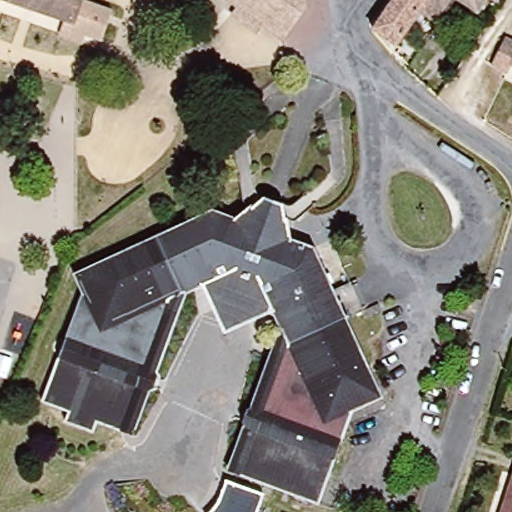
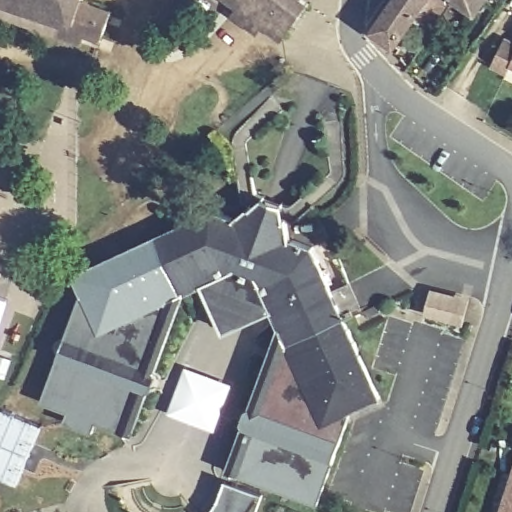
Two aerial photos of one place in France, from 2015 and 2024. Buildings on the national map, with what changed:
unchanged [(74,24),(7,0),(82,0),(74,24)]
unchanged [(112,9),(100,40),(84,34),(80,46),(57,38),(64,20),(74,24),(82,0),(84,0),(112,9)]
unchanged [(228,0),(306,0),(310,4),(282,38),(263,24),(257,32),(233,15),(239,7),(228,0)]
unchanged [(428,22),(426,22),(403,57),(398,54),(399,50),(367,27),(387,0),(443,0),(428,22)]
unchanged [(473,12),(457,0),(481,0),(473,12)]
unchanged [(494,8),(482,0),(500,0),(494,8)]
unchanged [(507,71),(491,63),(506,35),(512,38),(512,64),(507,71)]
unchanged [(88,303),(76,276),(228,209),(240,214),(252,202),(260,207),(269,197),(281,201),(281,214),(287,216),(290,236),(304,242),(336,311),(372,390),(349,400),(343,414),(312,491),(263,472),(228,458),(278,329),(272,315),(223,337),(201,287),(185,294),(136,421),(55,389),(88,303)]
unchanged [(1,253),(0,256),(0,239),(5,241),(1,253)]
new [(184,365),(232,384),(214,431),(166,413),(184,365)]
new [(17,484),(0,477),(0,407),(42,425),(17,484)]
unchanged [(495,512),(512,459),(512,512),(495,512)]
unchanged [(248,512),(208,512),(223,472),(258,485),(248,512)]

